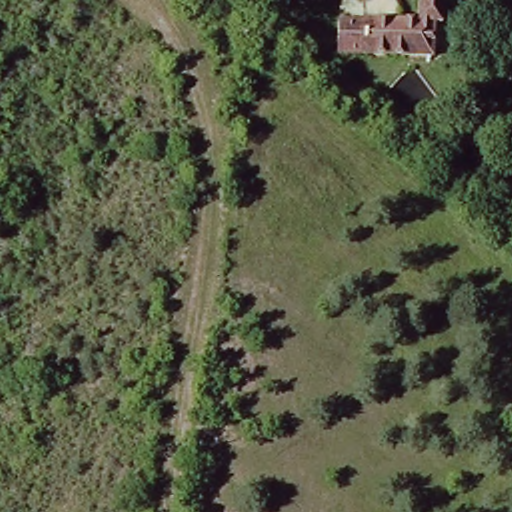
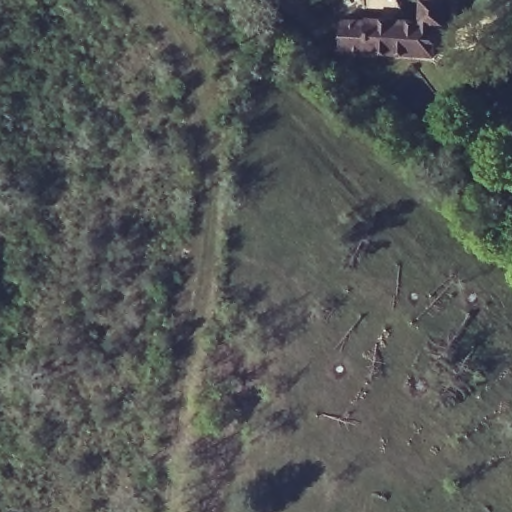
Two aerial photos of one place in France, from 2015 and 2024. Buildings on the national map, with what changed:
unchanged [(443,24),(444,53),(335,57),(335,26),(422,22),(423,1),(448,0),(449,22),(443,24)]

